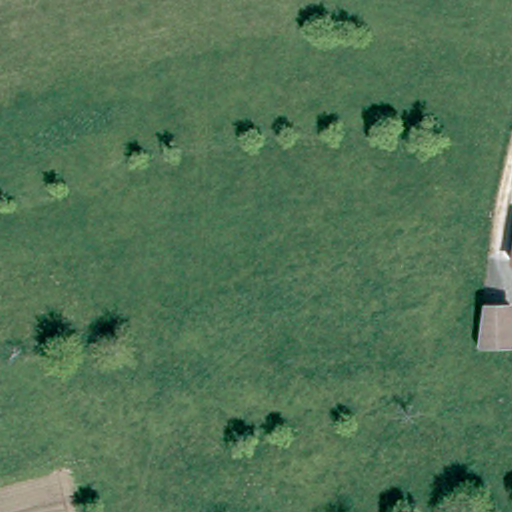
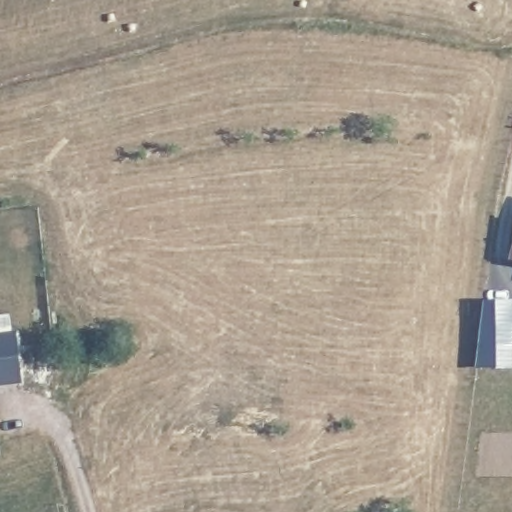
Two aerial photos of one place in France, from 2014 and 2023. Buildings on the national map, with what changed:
unchanged [(512,342),(489,342),(490,303),(512,303),(512,342)]
new [(17,335),(22,383),(0,385),(0,337),(17,335)]

